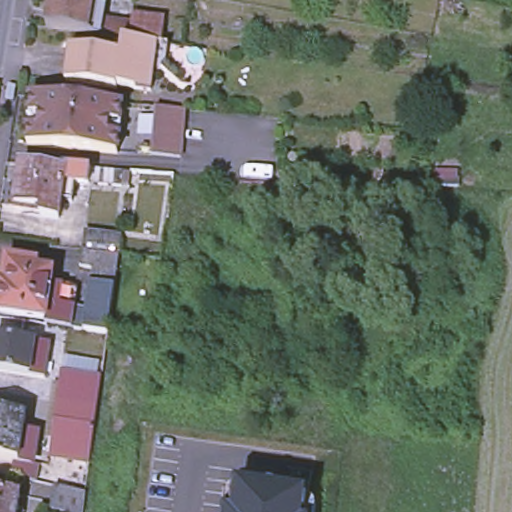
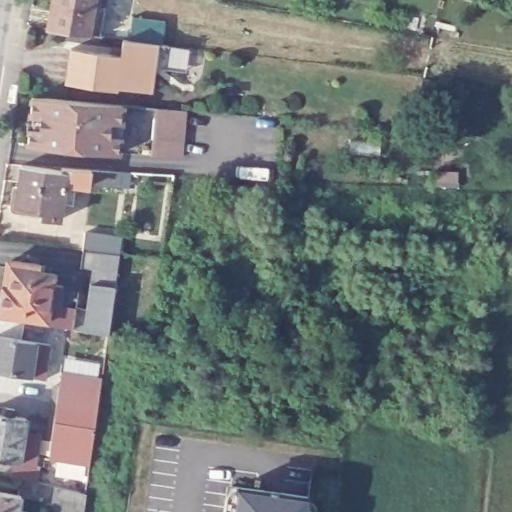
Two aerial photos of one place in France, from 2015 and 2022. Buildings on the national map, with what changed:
unchanged [(49,34),(55,0),(102,0),(97,40),(49,34)]
unchanged [(134,21),(167,25),(164,49),(174,50),(172,67),(158,80),(156,95),(122,91),(122,94),(70,88),(75,51),(125,59),(127,44),(131,44),(134,21)]
unchanged [(122,105),(120,124),(110,124),(109,137),(119,138),(117,155),(27,145),(29,129),(37,129),(39,115),(30,114),(32,97),(122,105)]
unchanged [(184,111),(179,157),(151,154),(155,109),(184,111)]
unchanged [(70,171),(65,211),(20,204),(25,165),(70,171)]
unchanged [(129,171),(127,188),(94,183),(96,169),(129,171)]
unchanged [(65,373),(72,325),(50,322),(50,318),(4,313),(7,285),(13,285),(15,266),(57,272),(55,281),(69,283),(66,302),(80,304),(80,305),(93,307),(99,266),(85,265),(87,247),(89,247),(91,230),(127,234),(125,250),(114,332),(107,379),(65,373)]
unchanged [(30,375),(0,371),(0,335),(35,340),(49,342),(45,377),(30,375)]
unchanged [(60,419),(62,404),(62,399),(65,373),(107,379),(104,406),(102,412),(100,426),(96,460),(54,454),(60,419)]
unchanged [(17,460),(0,457),(0,411),(32,415),(27,444),(40,446),(39,451),(46,452),(44,464),(41,481),(15,474),(17,460)]
unchanged [(83,512),(59,512),(49,509),(54,486),(85,494),(83,512)]
unchanged [(17,512),(0,512),(0,491),(20,494),(17,512)]
unchanged [(237,491),(307,498),(306,512),(235,512),(237,491)]

